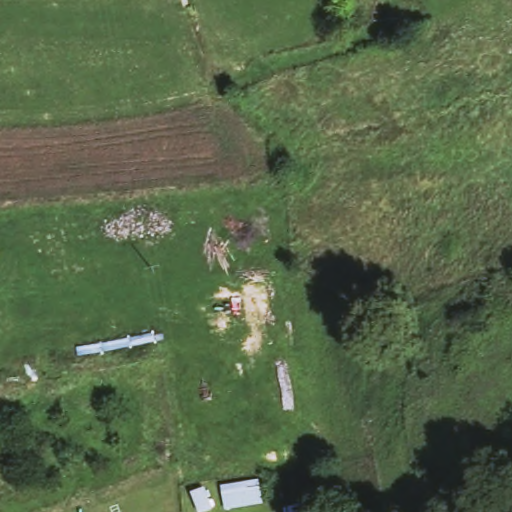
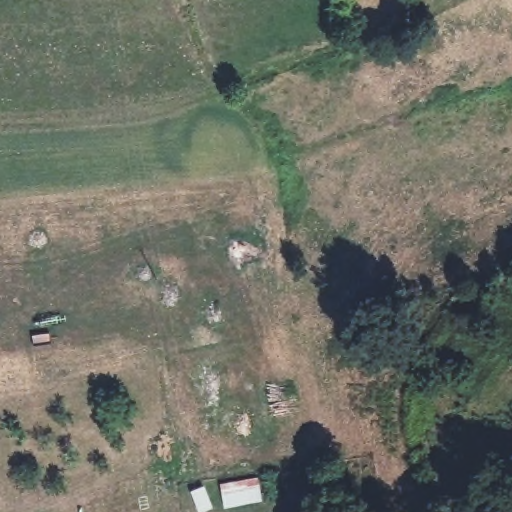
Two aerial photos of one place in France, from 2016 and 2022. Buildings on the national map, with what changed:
unchanged [(262,495),(224,503),(220,489),(258,481),(262,495)]

